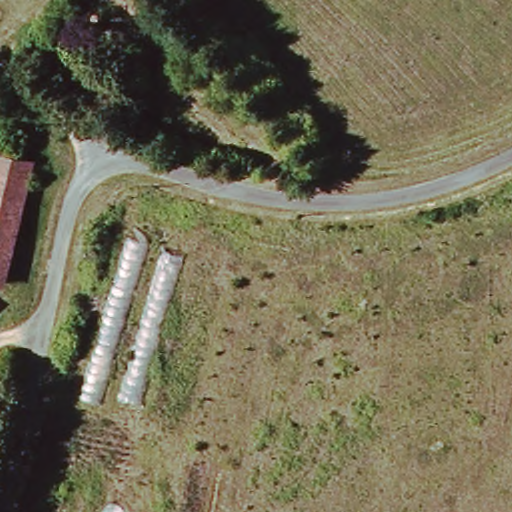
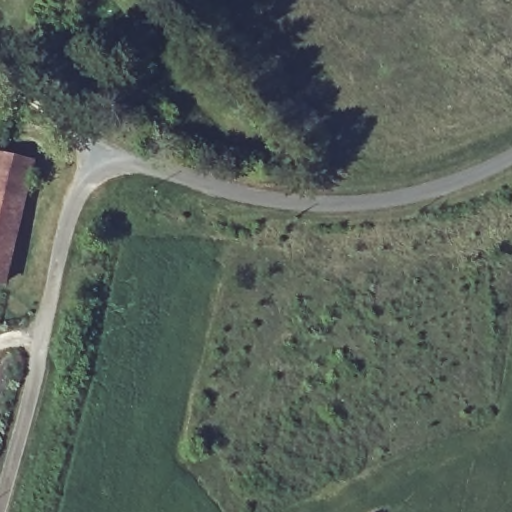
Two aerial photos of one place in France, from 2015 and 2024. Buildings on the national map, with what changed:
unchanged [(30,162),(2,287),(0,286),(0,155),(30,162)]
demolished [(126,234),(185,251),(139,406),(102,397),(98,404),(79,395),(126,234)]
demolished [(97,462),(89,512),(60,512),(72,456),(97,462)]
demolished [(141,512),(112,512),(113,506),(141,512)]

